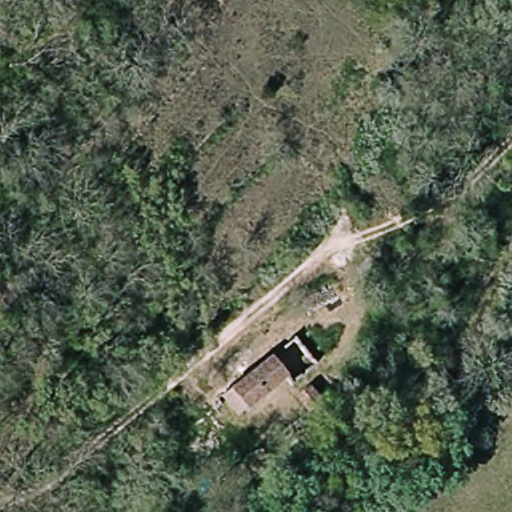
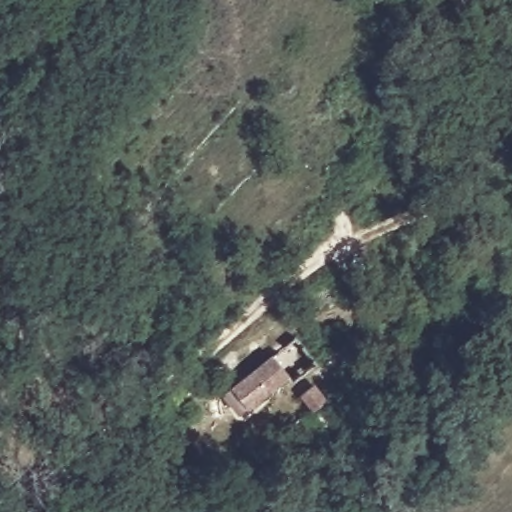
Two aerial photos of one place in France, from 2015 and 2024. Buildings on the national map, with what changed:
unchanged [(345,90),(356,97),(348,110),(337,102),(345,90)]
unchanged [(243,413),(227,395),(272,357),(288,375),(243,413)]

